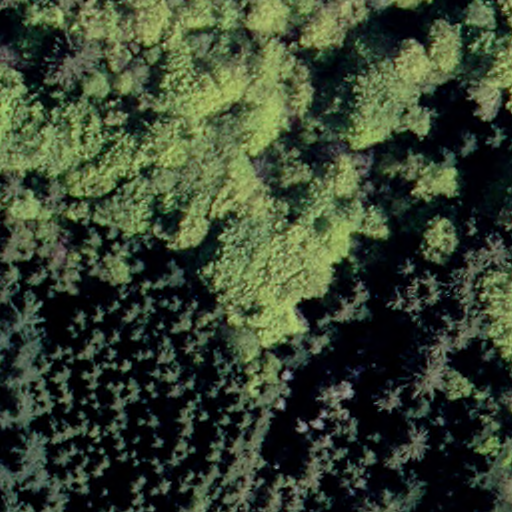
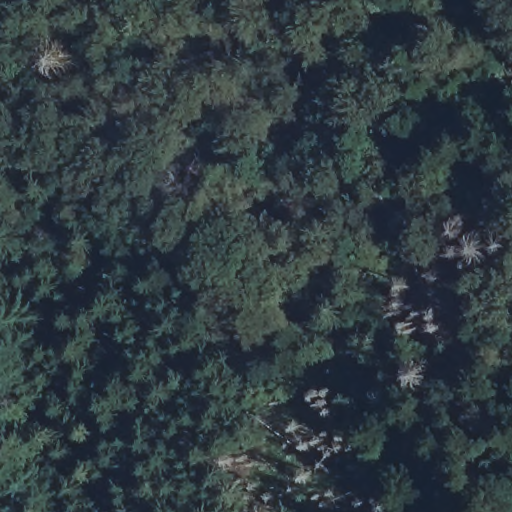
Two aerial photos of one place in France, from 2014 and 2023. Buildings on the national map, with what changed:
[]

